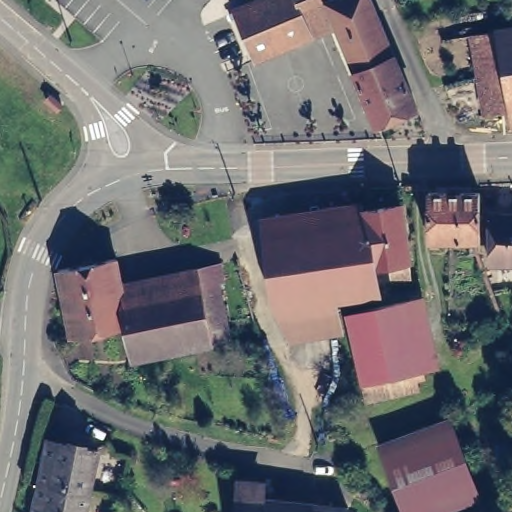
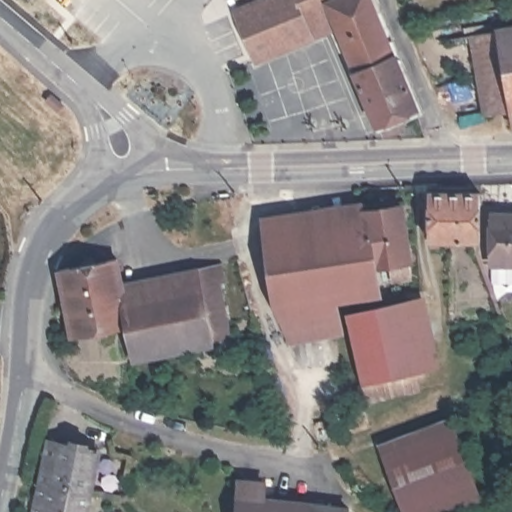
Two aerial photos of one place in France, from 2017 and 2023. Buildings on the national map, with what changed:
unchanged [(261,0),(293,0),(298,14),(322,5),(335,33),(252,69),(236,11),(261,0)]
unchanged [(327,1),(329,0),(369,0),(375,16),(335,33),(322,5),(298,14),(293,0),(326,0),(327,1)]
unchanged [(375,16),(389,47),(348,64),(335,33),(375,16)]
unchanged [(496,28),(512,26),(512,123),(510,123),(507,106),(496,28)]
unchanged [(482,109),(472,32),(496,28),(507,106),(482,109)]
unchanged [(389,47),(414,107),(374,125),(348,64),(389,47)]
unchanged [(451,235),(451,241),(432,241),(432,236),(430,235),(430,188),(482,189),(482,235),(451,235)]
unchanged [(273,298),(269,275),(262,231),(362,218),(362,207),(397,202),(407,275),(390,276),(387,261),(374,263),(376,285),(332,291),(273,298)]
unchanged [(506,264),(506,266),(492,265),(494,215),(512,216),(512,265),(506,264)]
unchanged [(110,259),(117,298),(120,328),(66,338),(52,270),(110,259)]
unchanged [(172,273),(207,266),(211,280),(222,338),(126,357),(120,328),(117,298),(174,286),(172,273)]
unchanged [(273,298),(332,291),(340,328),(290,338),(273,298)]
unchanged [(377,392),(378,394),(365,397),(356,356),(347,310),(397,299),(410,296),(415,320),(402,322),(415,385),(377,392)]
unchanged [(485,500),(454,512),(408,512),(384,444),(455,418),(485,500)]
unchanged [(42,478),(54,480),(62,446),(100,454),(90,499),(40,489),(42,478)]
unchanged [(269,485),(268,500),(352,509),(351,512),(240,512),(242,483),(269,485)]
unchanged [(87,512),(36,512),(40,489),(90,499),(87,512)]

